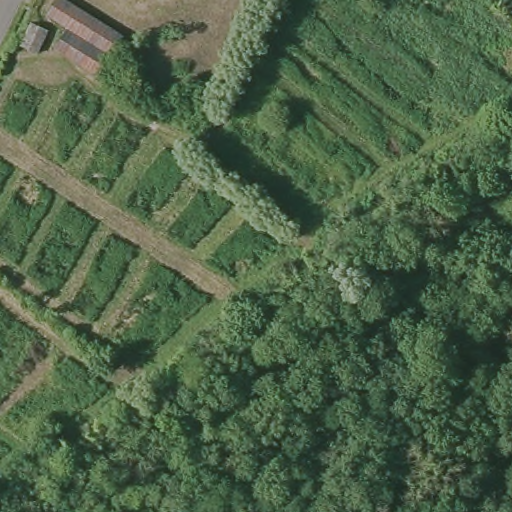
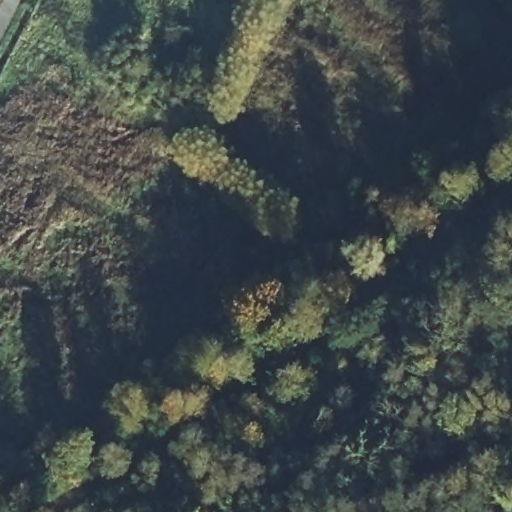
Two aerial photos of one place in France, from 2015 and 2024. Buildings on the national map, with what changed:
demolished [(66,31),(48,21),(58,0),(61,0),(130,40),(121,60),(111,56),(103,69),(58,47),(66,31)]
demolished [(32,26),(46,33),(35,55),(22,49),(32,26)]

